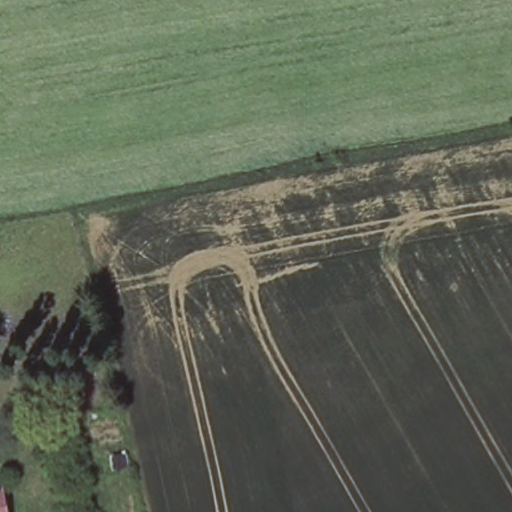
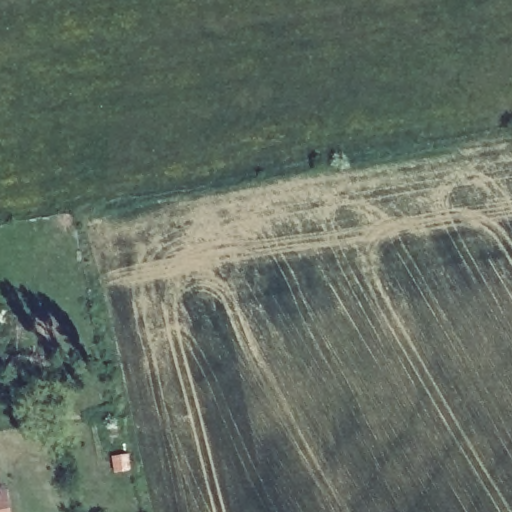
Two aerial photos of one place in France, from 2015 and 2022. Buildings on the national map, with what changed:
unchanged [(12,512),(0,512),(0,487),(7,486),(12,512)]

